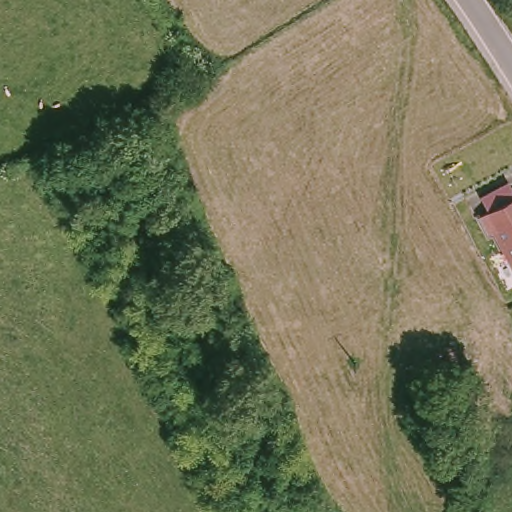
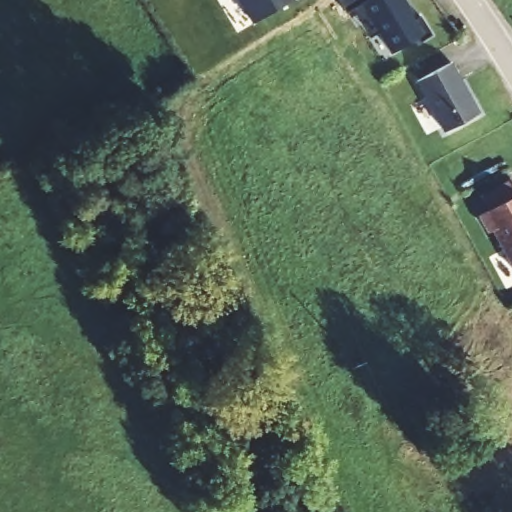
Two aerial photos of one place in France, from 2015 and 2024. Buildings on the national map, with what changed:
new [(238,0),(293,0),(253,25),(238,0)]
new [(417,36),(382,58),(353,11),(348,14),(340,0),(403,0),(415,19),(420,16),(431,34),(420,40),(417,36)]
new [(444,132),(417,82),(453,62),(480,112),(444,132)]
unchanged [(489,233),(479,215),(512,197),(512,265),(494,231),(489,233)]

